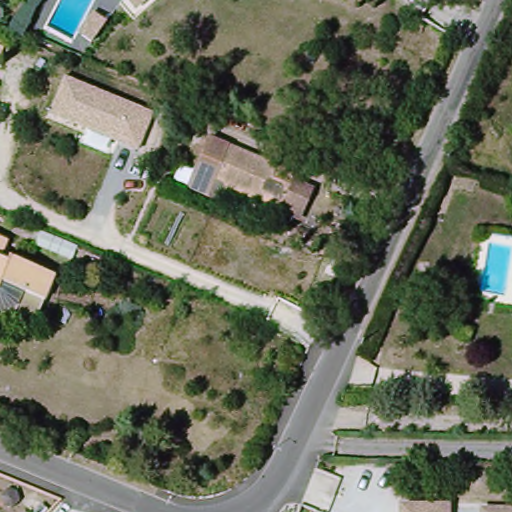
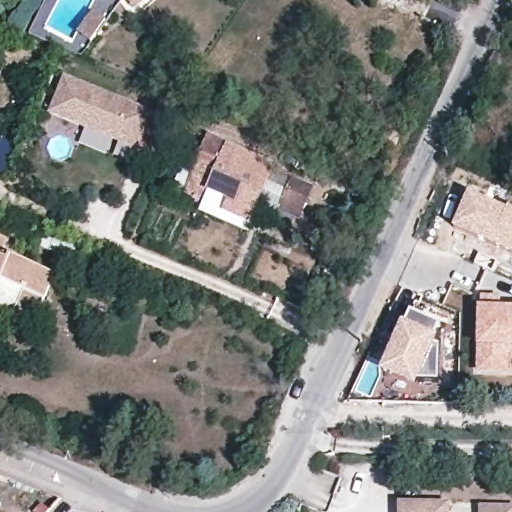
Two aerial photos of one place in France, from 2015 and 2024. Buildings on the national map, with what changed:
unchanged [(134,9),(127,0),(144,0),(134,9)]
unchanged [(63,77),(152,112),(138,149),(49,112),(63,77)]
unchanged [(196,170),(208,140),(225,147),(227,142),(278,164),(295,170),(290,182),(279,209),(211,180),(213,177),(196,170)]
unchanged [(406,147),(398,163),(385,157),(393,142),(406,147)]
new [(464,189),(507,207),(508,204),(512,206),(512,255),(447,226),(464,189)]
unchanged [(8,258),(10,254),(54,273),(43,300),(1,282),(0,285),(0,235),(8,239),(0,255),(8,258)]
unchanged [(43,300),(35,317),(14,309),(0,311),(0,285),(1,282),(43,300)]
new [(476,334),(479,294),(501,296),(500,305),(512,306),(512,371),(475,372),(476,334)]
new [(390,343),(409,310),(442,325),(435,346),(440,347),(439,383),(417,383),(416,387),(378,373),(390,343)]
unchanged [(462,326),(471,329),(468,338),(458,336),(462,326)]
unchanged [(447,512),(401,512),(401,508),(447,508),(447,511),(447,512)]
unchanged [(512,511),(512,512),(482,512),(482,511),(512,511)]

